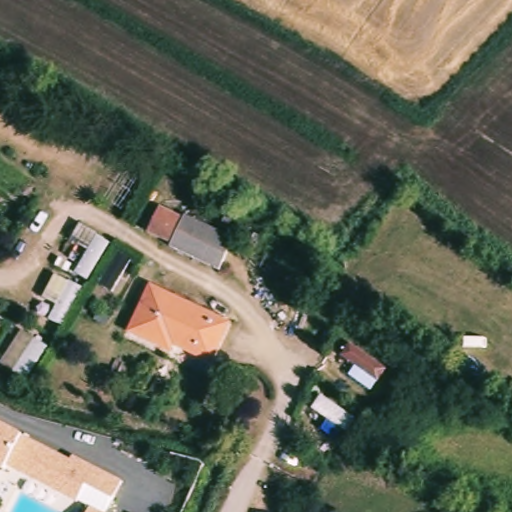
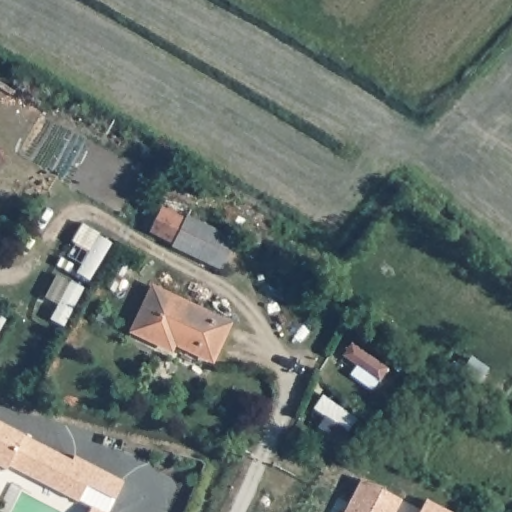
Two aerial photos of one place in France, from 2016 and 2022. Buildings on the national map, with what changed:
unchanged [(0,221),(0,187),(18,198),(4,223),(0,221)]
unchanged [(171,247),(172,243),(148,232),(160,207),(184,219),(186,215),(235,238),(220,270),(171,247)]
unchanged [(234,324),(217,361),(179,343),(176,350),(136,331),(156,287),(234,324)]
unchanged [(476,386),(458,374),(470,356),(488,368),(476,386)]
unchanged [(114,498),(88,483),(78,503),(2,464),(0,467),(0,421),(123,480),(114,498)]
new [(401,499),(394,512),(343,512),(360,479),(401,499)]
new [(449,512),(419,512),(425,500),(449,512)]
unchanged [(88,512),(92,504),(106,512),(88,512)]

